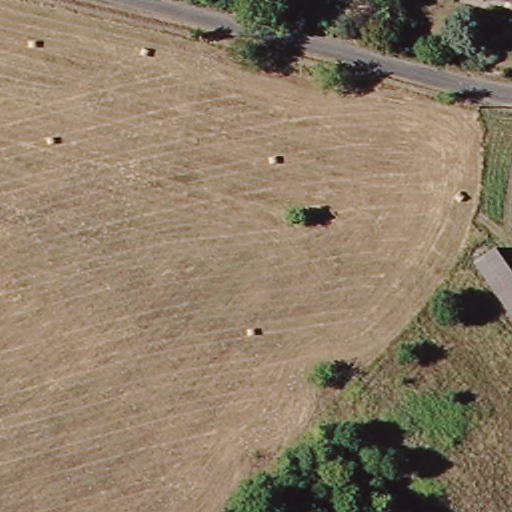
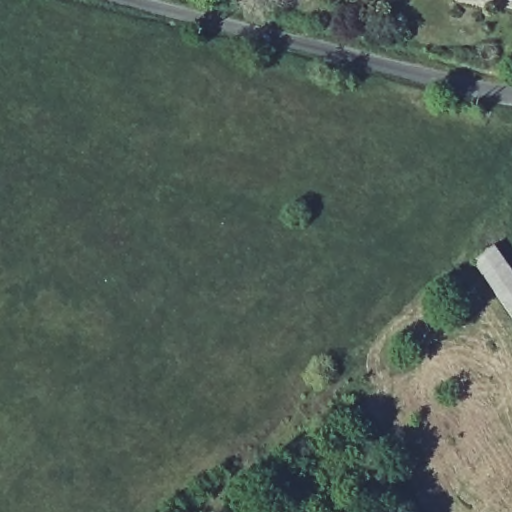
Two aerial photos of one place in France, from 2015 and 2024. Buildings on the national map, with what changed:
unchanged [(492,244),(512,275),(512,315),(507,318),(468,258),(492,244)]

